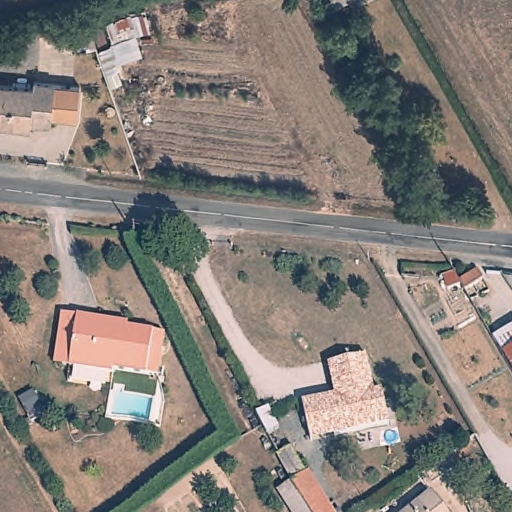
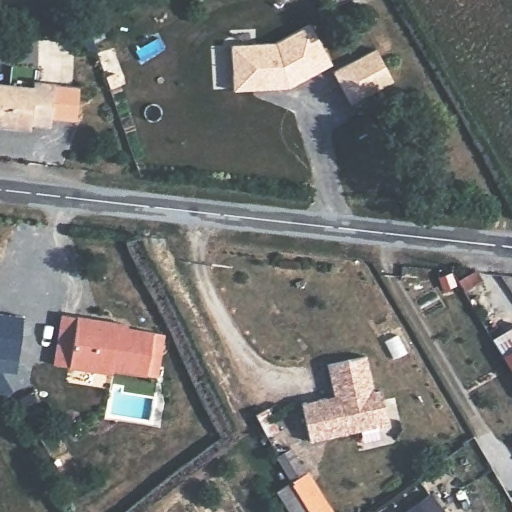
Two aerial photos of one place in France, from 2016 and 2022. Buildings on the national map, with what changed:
unchanged [(345,0),(326,10),(320,0),(345,0)]
new [(276,42),(311,23),(332,64),(288,88),(232,91),(230,45),(276,42)]
unchanged [(90,29),(97,49),(87,51),(81,32),(90,29)]
new [(332,71),(376,48),(393,82),(350,105),(332,71)]
unchanged [(111,86),(106,73),(116,69),(122,83),(111,86)]
unchanged [(33,81),(79,86),(76,121),(51,119),(50,126),(31,124),(30,129),(0,125),(0,84),(32,87),(33,81)]
unchanged [(477,270),(482,279),(464,290),(458,281),(477,270)]
unchanged [(151,379),(117,374),(117,378),(74,371),(59,369),(67,319),(82,321),(132,329),(132,333),(169,338),(167,353),(162,381),(151,379)]
unchanged [(512,333),(512,377),(492,344),(512,333)]
unchanged [(303,402),(333,395),(328,364),(367,355),(375,390),(381,389),(390,425),(311,442),(303,402)]
unchanged [(267,407),(278,429),(266,435),(255,414),(267,407)]
unchanged [(290,448),(305,474),(307,473),(328,506),(329,505),(333,512),(310,512),(292,481),(277,456),(290,448)]
unchanged [(277,490),(292,481),(310,512),(291,512),(277,490)]
unchanged [(425,498),(436,512),(407,512),(425,498)]

